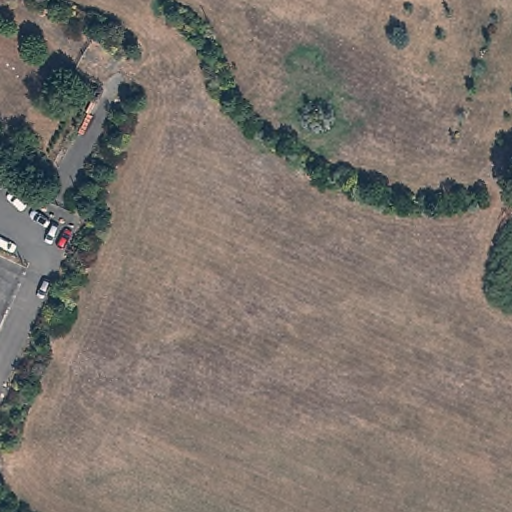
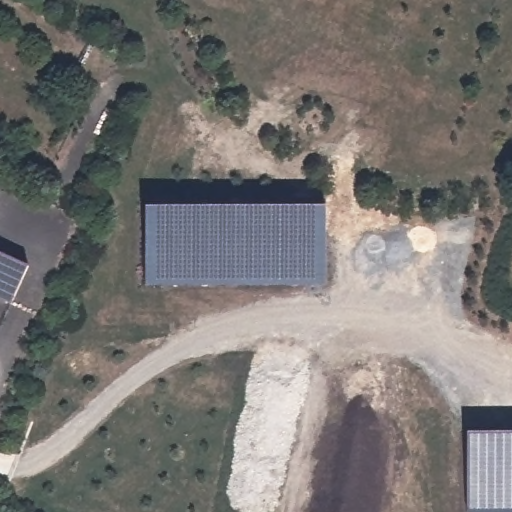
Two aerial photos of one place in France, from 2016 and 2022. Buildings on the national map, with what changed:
new [(144,205),(328,204),(326,283),(146,284),(144,205)]
new [(11,302),(0,298),(0,251),(29,264),(11,302)]
new [(467,429),(512,429),(512,510),(467,510),(467,429)]

